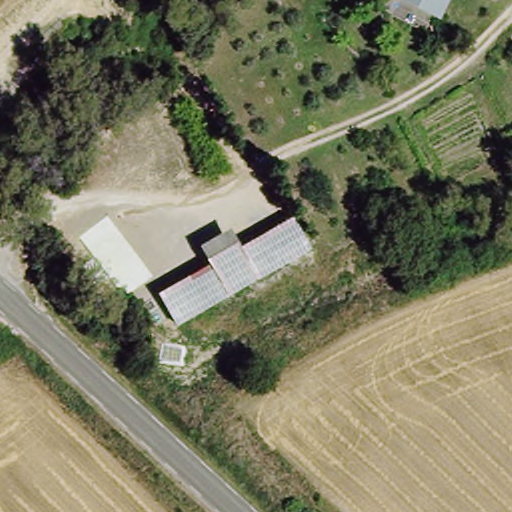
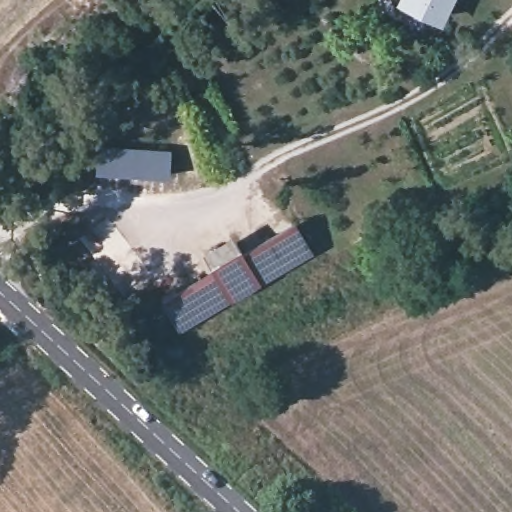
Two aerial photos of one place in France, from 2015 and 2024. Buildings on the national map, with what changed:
unchanged [(437,20),(401,3),(402,0),(448,0),(437,20)]
new [(97,170),(99,142),(170,147),(168,175),(97,170)]
unchanged [(161,292),(213,263),(210,257),(237,242),(241,249),(294,220),(310,251),(177,323),(161,292)]

